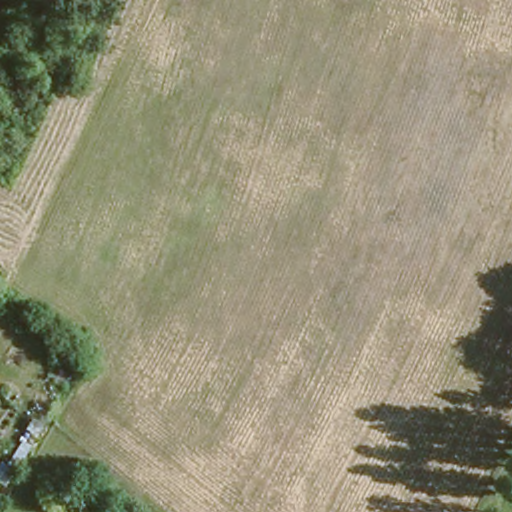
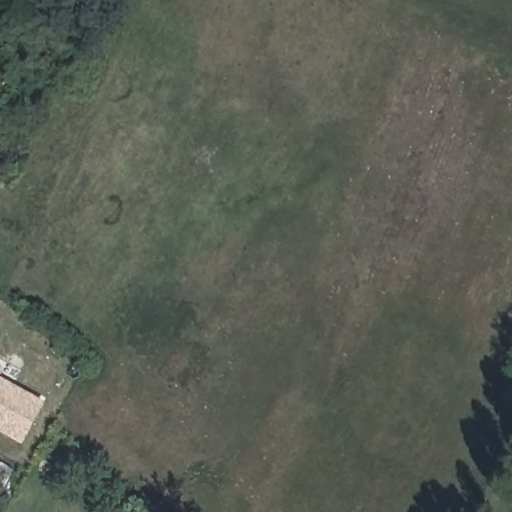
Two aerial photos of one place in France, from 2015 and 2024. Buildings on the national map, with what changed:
new [(22,444),(0,432),(0,376),(46,401),(22,444)]

